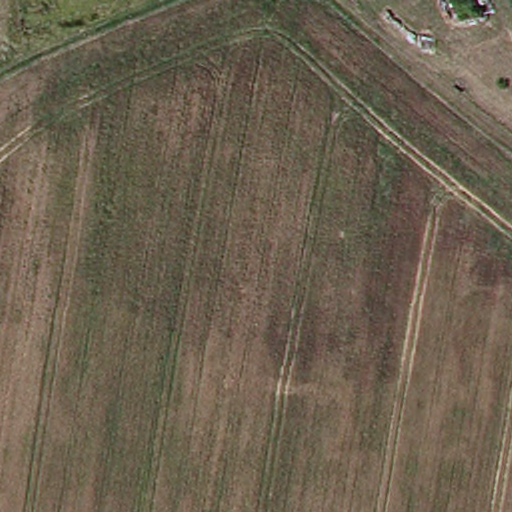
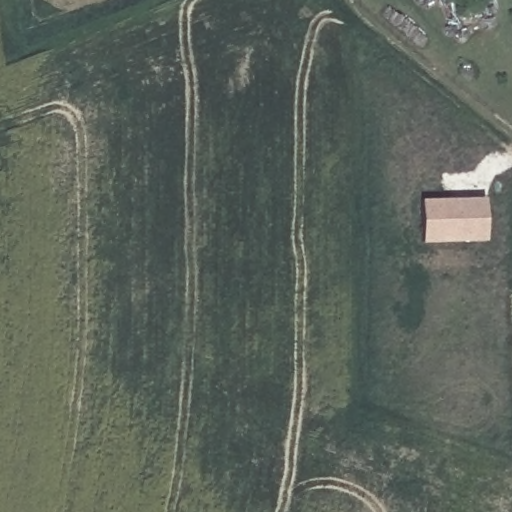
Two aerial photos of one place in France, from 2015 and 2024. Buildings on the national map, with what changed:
new [(423,245),(422,201),(486,199),(487,244),(423,245)]

